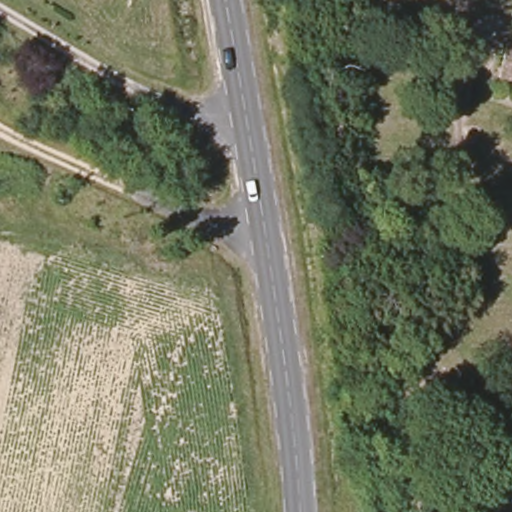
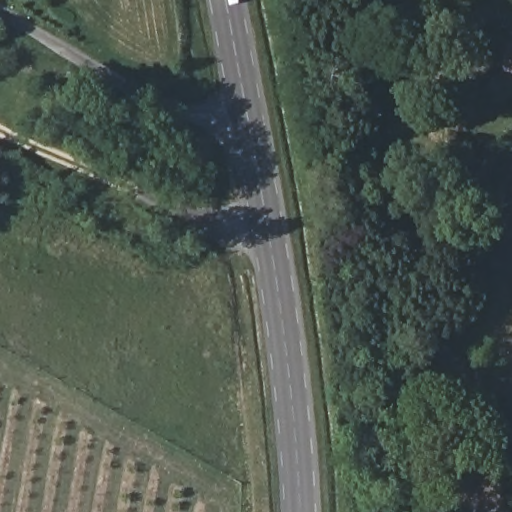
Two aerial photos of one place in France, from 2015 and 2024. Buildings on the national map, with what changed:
unchanged [(510,37),(512,38),(512,75),(502,72),(510,37)]

